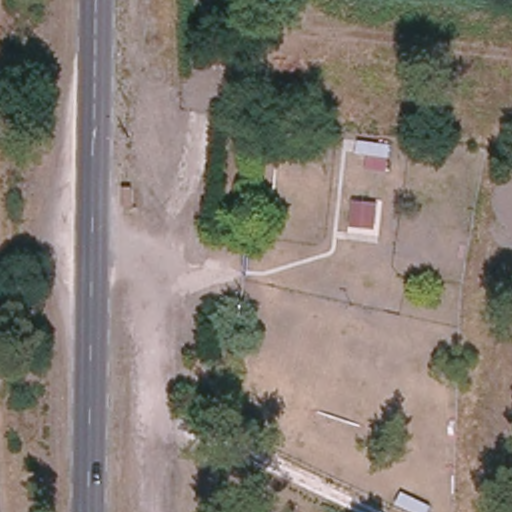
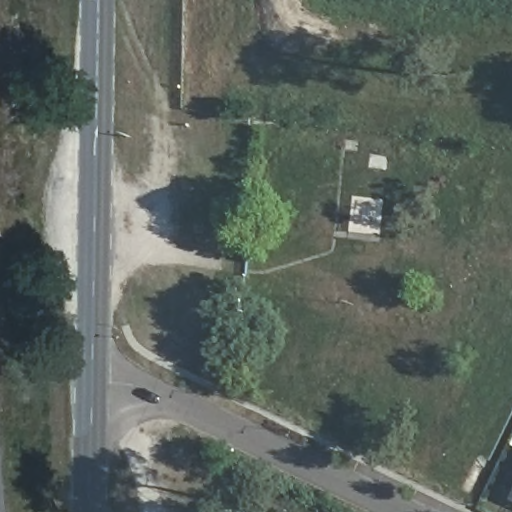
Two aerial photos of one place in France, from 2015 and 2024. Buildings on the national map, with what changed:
unchanged [(390,170),(363,169),(366,155),(355,154),(357,139),(390,142),(390,170)]
unchanged [(378,227),(352,225),(354,200),(379,203),(378,227)]

